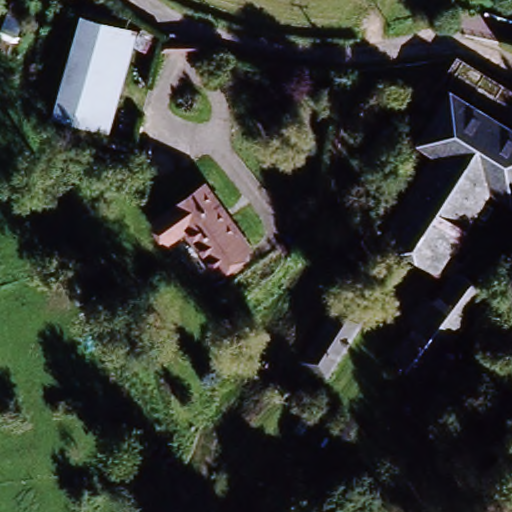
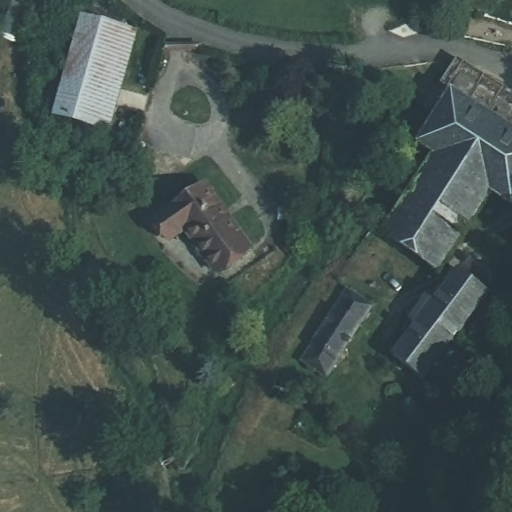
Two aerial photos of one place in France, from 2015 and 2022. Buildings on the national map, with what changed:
unchanged [(57,121),(82,9),(122,19),(119,31),(97,131),(57,121)]
unchanged [(97,131),(119,31),(134,34),(112,134),(97,131)]
unchanged [(430,101),(446,76),(512,117),(512,151),(441,108),(430,101)]
unchanged [(507,218),(485,206),(437,285),(384,253),(430,175),(409,163),(398,156),(413,131),(422,136),(430,125),(441,108),(512,151),(512,208),(507,218)]
unchanged [(251,256),(214,276),(187,226),(172,234),(162,216),(215,188),(251,256)]
unchanged [(449,334),(420,374),(394,356),(462,259),(488,278),(449,334)]
unchanged [(374,308),(332,379),(306,364),(348,293),(374,308)]

